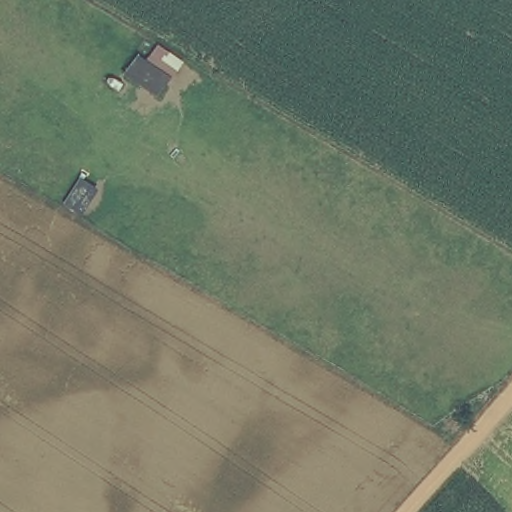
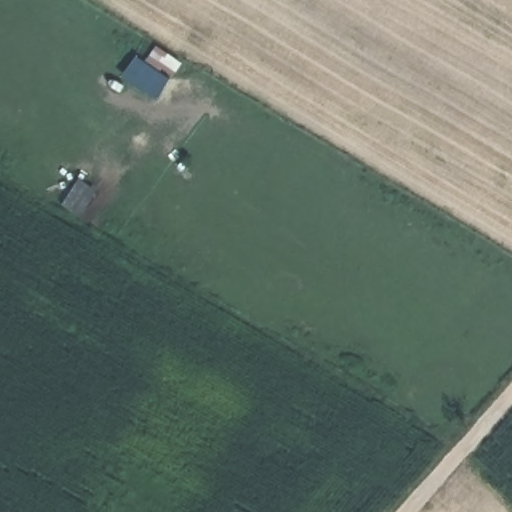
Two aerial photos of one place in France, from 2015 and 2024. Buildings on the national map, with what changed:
unchanged [(170,76),(158,97),(125,75),(137,57),(170,76)]

